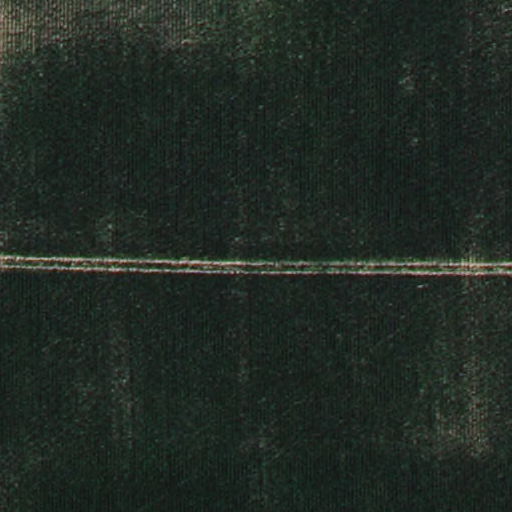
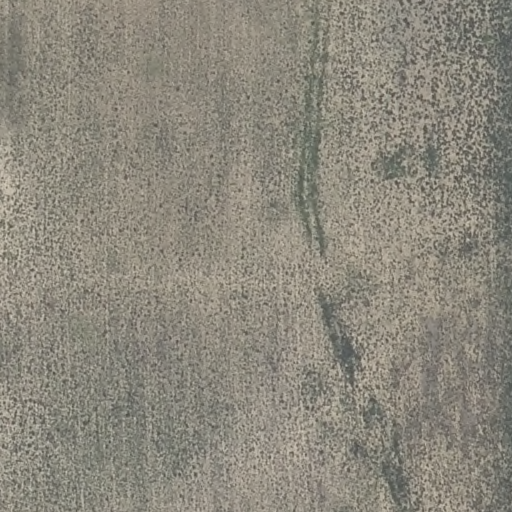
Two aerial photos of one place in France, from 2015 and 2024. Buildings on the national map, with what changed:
[]

